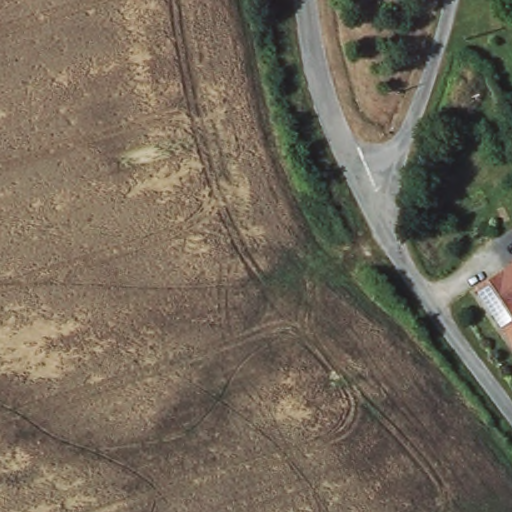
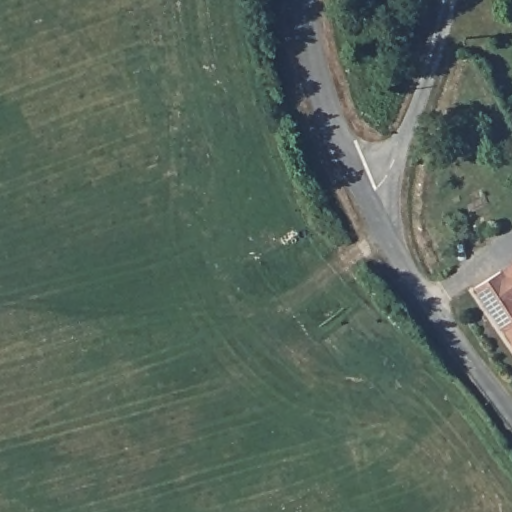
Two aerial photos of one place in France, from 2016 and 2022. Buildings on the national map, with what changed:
unchanged [(481,288),(507,271),(512,267),(512,333),(481,288)]

